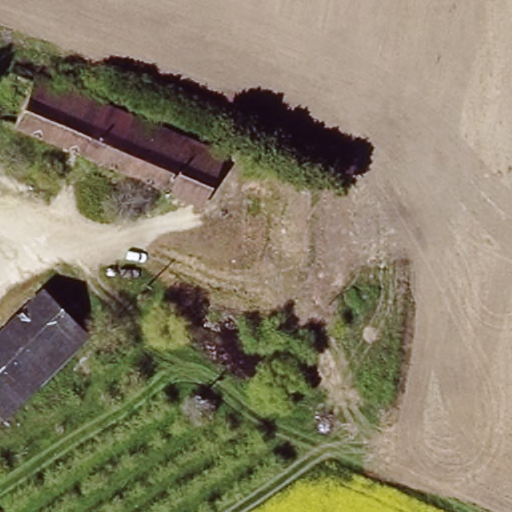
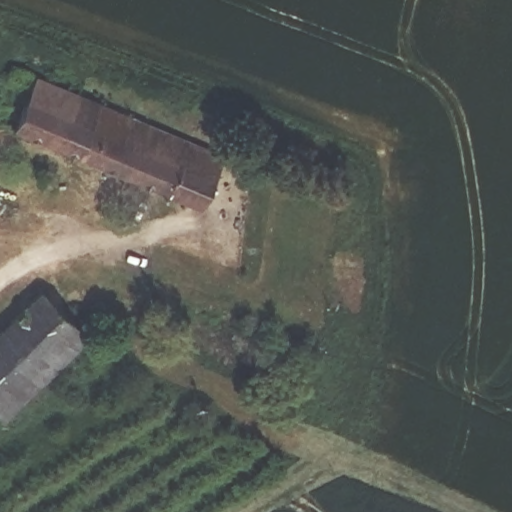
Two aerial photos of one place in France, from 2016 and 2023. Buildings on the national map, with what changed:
unchanged [(222,206),(18,132),(28,105),(48,112),(50,102),(19,89),(25,74),(243,157),(222,206)]
unchanged [(1,420),(0,419),(0,330),(38,290),(86,336),(1,420)]

